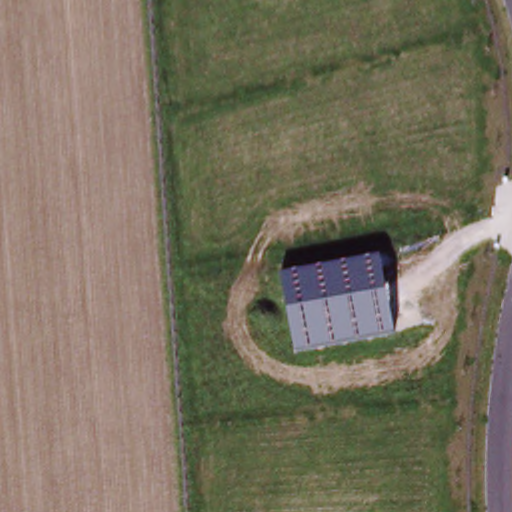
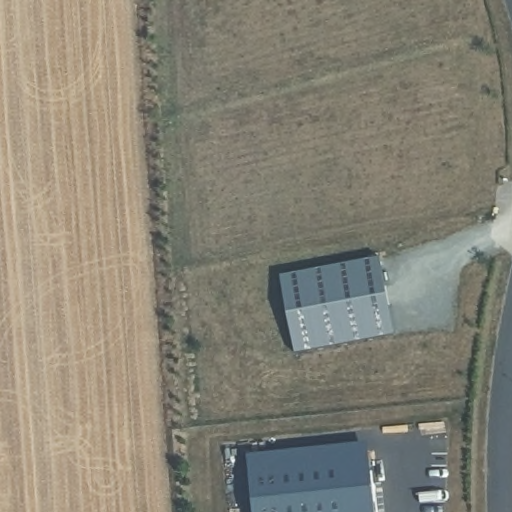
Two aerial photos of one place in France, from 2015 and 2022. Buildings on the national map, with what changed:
unchanged [(394,336),(296,354),(282,275),(380,258),(394,336)]
new [(366,444),(368,459),(247,472),(246,456),(366,444)]
new [(373,512),(251,512),(247,472),(368,459),(373,512)]

